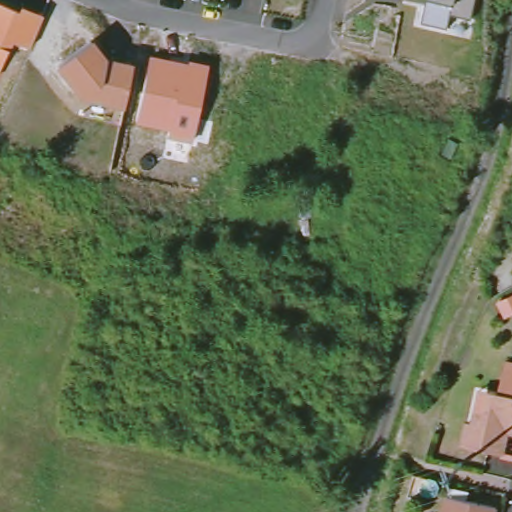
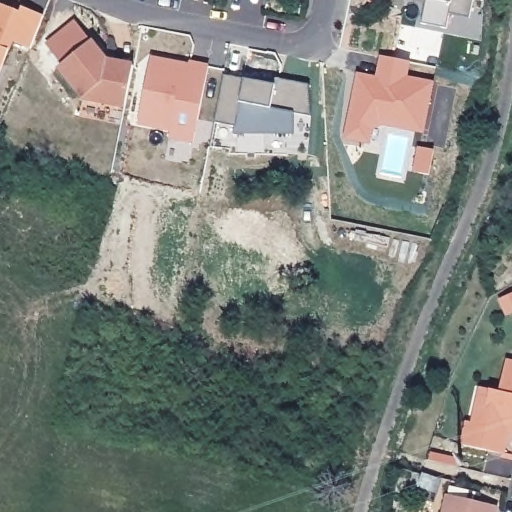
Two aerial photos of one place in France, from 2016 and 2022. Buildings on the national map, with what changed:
unchanged [(404,1),(400,0),(405,0),(404,1)]
unchanged [(469,16),(450,10),(448,26),(423,21),(426,1),(421,0),(473,0),(469,16)]
unchanged [(11,42),(6,53),(0,67),(0,4),(19,11),(21,6),(42,14),(28,47),(11,42)]
unchanged [(109,59),(134,64),(125,106),(96,99),(83,109),(56,69),(93,41),(109,59)]
unchanged [(188,65),(190,59),(209,63),(194,143),(168,138),(169,130),(138,125),(151,56),(188,65)]
new [(356,74),(376,78),(381,56),(408,62),(404,78),(431,83),(422,130),(379,121),(366,128),(364,142),(343,138),(356,74)]
new [(223,75),(274,86),(275,79),(308,86),(309,118),(293,114),(293,135),(231,134),(233,127),(213,123),(223,75)]
unchanged [(512,448),(471,439),(476,417),(492,421),(499,384),(509,385),(512,370),(512,446),(512,448)]
unchanged [(495,505),(493,512),(442,512),(446,494),(495,505)]

